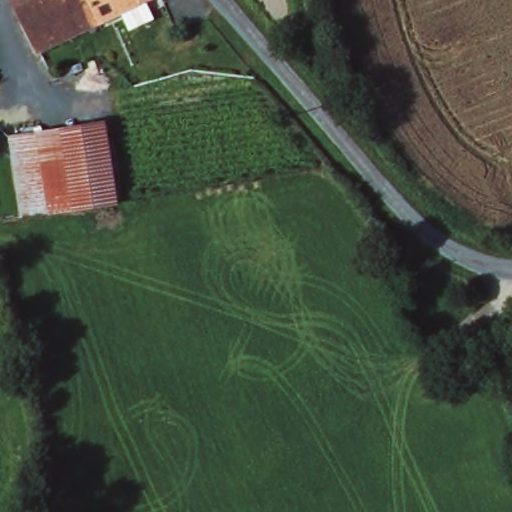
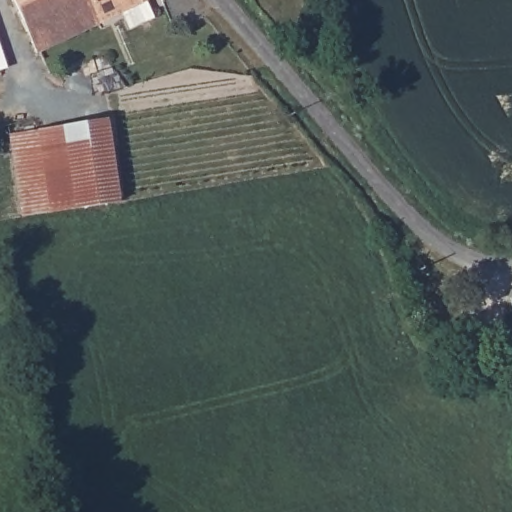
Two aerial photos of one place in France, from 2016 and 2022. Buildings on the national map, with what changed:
unchanged [(33,47),(13,0),(90,0),(98,20),(33,47)]
unchanged [(90,0),(144,0),(98,20),(90,0)]
unchanged [(121,190),(123,197),(28,215),(14,140),(109,122),(121,190)]

